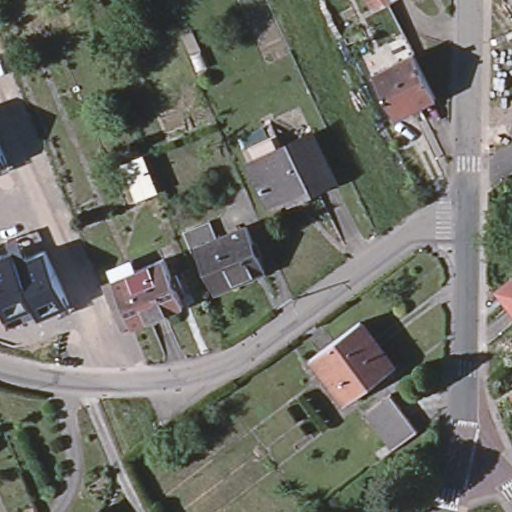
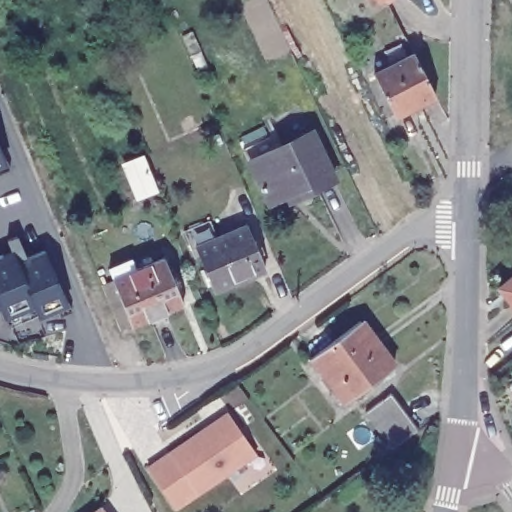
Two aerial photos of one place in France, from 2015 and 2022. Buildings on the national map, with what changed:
unchanged [(369,7),(365,0),(382,0),(369,7)]
unchanged [(411,52),(434,96),(394,116),(371,72),(411,52)]
unchanged [(339,183),(304,200),(290,206),(287,200),(271,207),(250,165),(244,152),(275,137),(278,137),(284,149),(315,134),(339,183)]
unchanged [(7,164),(10,170),(0,174),(0,148),(7,164)]
unchanged [(146,164),(156,188),(138,196),(128,172),(146,164)]
unchanged [(512,203),(512,215),(507,208),(512,203)]
unchanged [(266,272),(231,287),(230,284),(210,292),(193,254),(188,256),(179,235),(206,224),(214,241),(246,228),(266,272)]
unchanged [(13,251),(9,240),(19,236),(29,257),(46,250),(69,305),(71,311),(64,313),(62,307),(39,317),(37,312),(9,325),(5,318),(0,309),(0,256),(13,251)]
unchanged [(111,267),(134,258),(139,268),(166,257),(185,303),(168,311),(170,316),(154,322),(151,317),(134,324),(124,328),(105,283),(115,279),(111,267)]
unchanged [(497,284),(512,272),(512,304),(497,284)]
unchanged [(357,321),(390,358),(352,392),(343,400),(307,358),(311,356),(357,321)]
unchanged [(389,392),(416,428),(390,447),(364,411),(389,392)]
new [(257,455),(176,511),(147,467),(227,412),(257,455)]
unchanged [(101,512),(90,512),(97,507),(101,512)]

